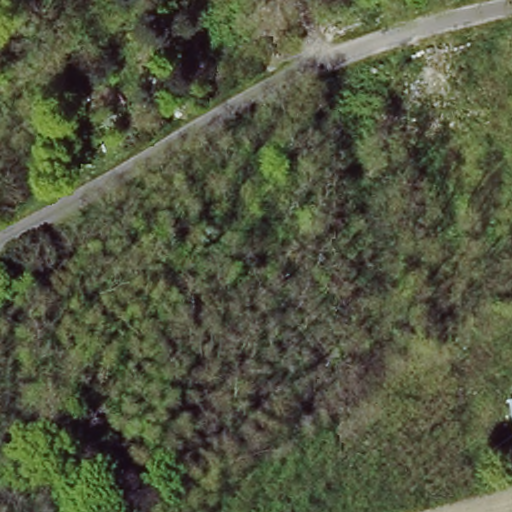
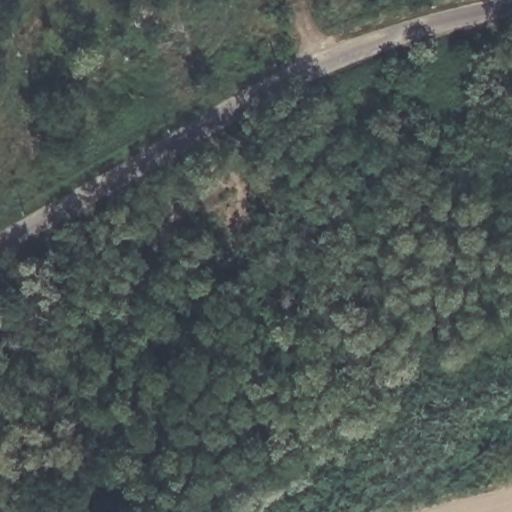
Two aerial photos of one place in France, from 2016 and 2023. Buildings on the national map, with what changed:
unchanged [(512,390),(512,424),(507,391),(512,390)]

